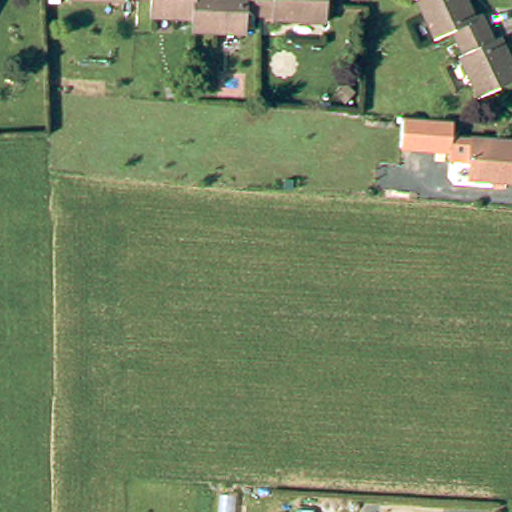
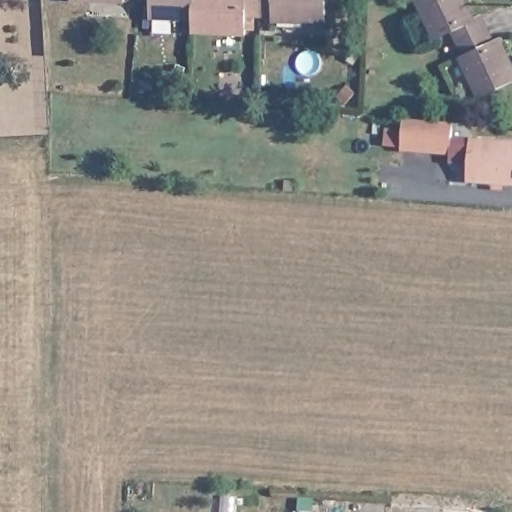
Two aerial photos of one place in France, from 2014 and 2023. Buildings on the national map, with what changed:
unchanged [(152,14),(152,0),(195,0),(194,16),(152,14)]
unchanged [(195,29),(194,16),(195,0),(327,0),(327,19),(276,17),(276,12),(248,12),(247,32),(195,29)]
unchanged [(512,81),(473,99),(456,63),(461,60),(450,35),(432,43),(412,3),(418,0),(461,0),(473,23),(482,20),(493,44),(500,41),(512,66),(512,81)]
unchanged [(452,121),(452,135),(467,138),(467,144),(465,163),(448,162),(449,152),(401,149),(403,117),(452,121)]
unchanged [(465,163),(467,144),(512,147),(512,187),(463,183),(465,163)]

